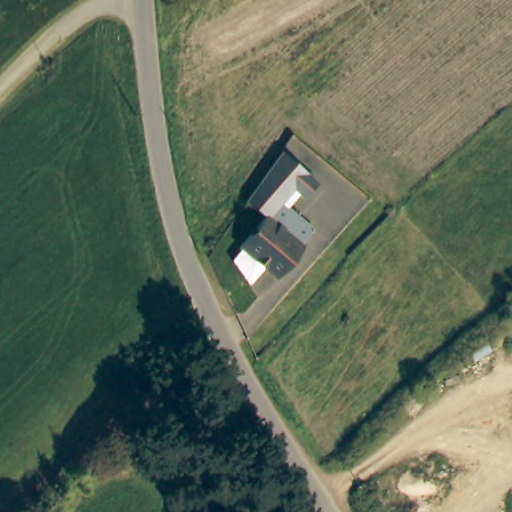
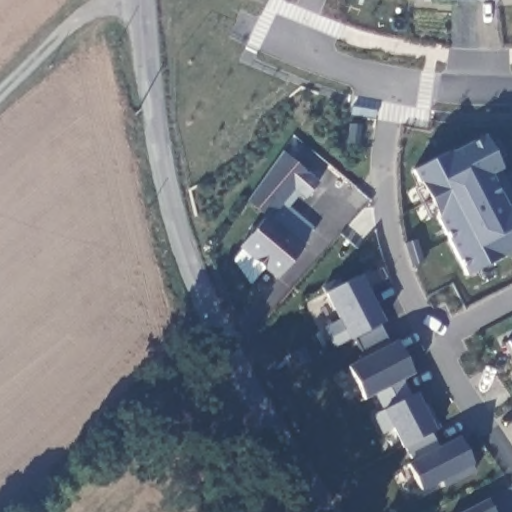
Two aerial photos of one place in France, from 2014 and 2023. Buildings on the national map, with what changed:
new [(495,1),(473,2),(431,0),(495,0),(495,1)]
new [(414,169),(449,150),(451,154),(485,136),(501,167),(500,168),(512,192),(512,251),(468,274),(414,169)]
unchanged [(320,179),(306,195),(295,185),(283,200),(315,226),(302,241),(303,242),(278,272),(277,273),(265,264),(250,281),(234,258),(244,246),(242,245),(268,214),(249,198),(253,191),(271,165),(277,156),(283,148),(320,179)]
new [(443,489),(440,481),(423,490),(392,428),(382,433),(373,415),(383,409),(375,395),(365,398),(348,365),(363,357),(352,338),(335,347),(325,326),(338,319),(325,292),(361,275),(385,322),(379,325),(388,341),(394,338),(414,373),(402,378),(412,395),(417,392),(436,429),(431,433),(439,446),(458,437),(470,465),(474,472),(443,489)]
new [(508,341),(512,339),(512,350),(508,341)]
new [(494,512),(461,512),(487,499),(494,512)]

